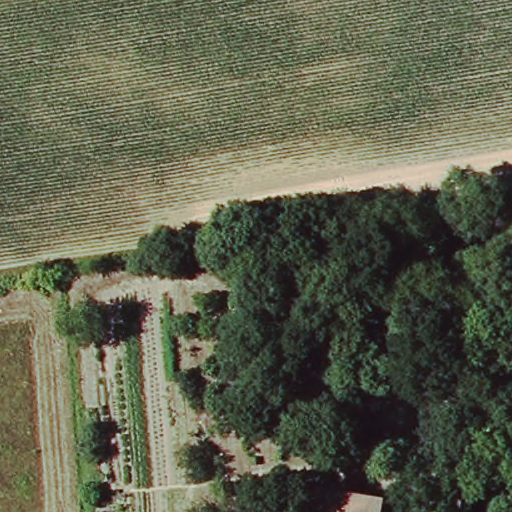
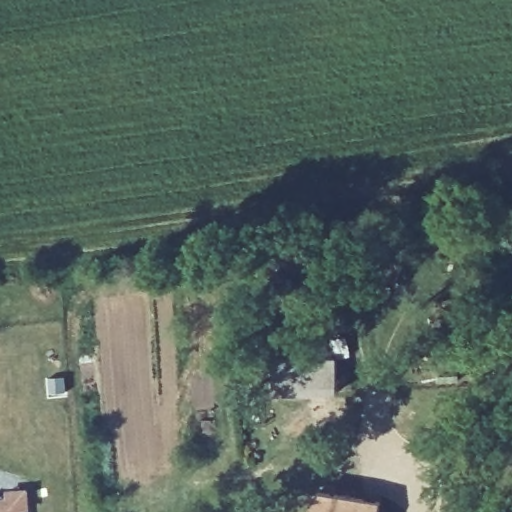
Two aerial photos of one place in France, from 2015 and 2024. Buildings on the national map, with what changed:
unchanged [(350,370),(349,402),(289,402),(289,369),(350,370)]
new [(8,497),(8,488),(30,487),(32,510),(23,510),(23,512),(0,512),(0,497),(8,497)]
unchanged [(326,493),(389,507),(387,512),(322,512),(326,493)]

